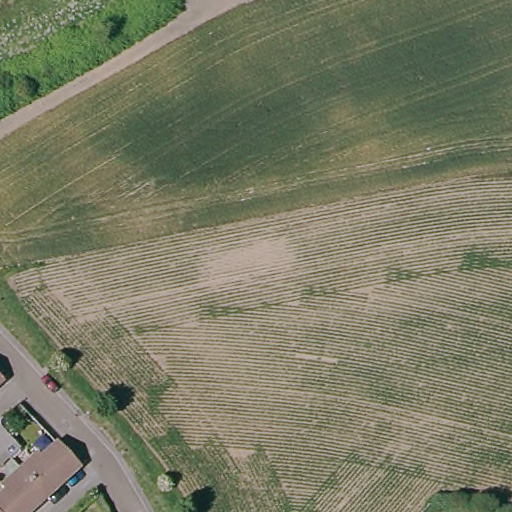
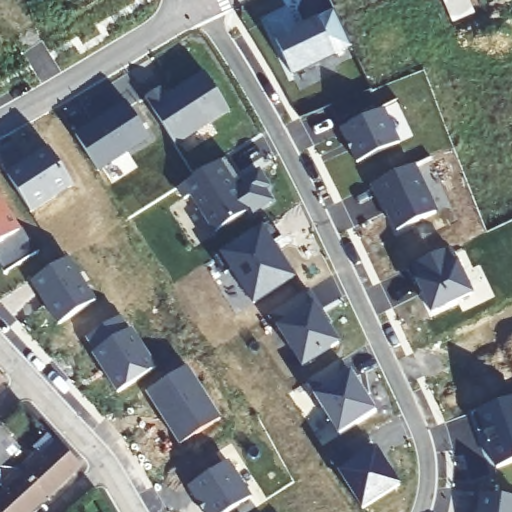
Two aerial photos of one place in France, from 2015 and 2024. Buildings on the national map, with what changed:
new [(443,0),(470,0),(475,13),(452,23),(443,0)]
new [(292,76),(275,39),(332,12),(350,50),(292,76)]
new [(145,98),(164,86),(170,94),(205,72),(230,113),(179,147),(145,98)]
new [(75,135),(127,103),(150,140),(100,173),(75,135)]
new [(338,132),(384,111),(400,144),(355,164),(338,132)]
new [(7,175),(49,148),(74,186),(32,213),(7,175)]
new [(190,196),(183,200),(177,190),(226,159),(240,182),(260,170),(271,188),(265,191),(274,204),(250,219),(247,213),(216,233),(190,196)]
new [(370,188),(415,165),(437,212),(395,232),(370,188)]
new [(0,267),(0,197),(22,230),(37,253),(5,273),(0,267)]
new [(230,272),(222,277),(212,260),(218,255),(264,227),(270,224),(280,240),(273,244),(295,279),(254,307),(230,272)]
new [(407,269),(452,250),(457,262),(473,296),(432,316),(407,269)]
new [(29,284),(69,259),(97,301),(59,325),(29,284)]
new [(275,328),(267,317),(309,290),(316,303),(341,343),(302,368),(275,328)]
new [(92,355),(95,354),(85,339),(122,317),(130,332),(133,330),(158,369),(117,393),(92,355)]
new [(314,395),(306,383),(340,362),(347,374),(351,372),(375,412),(339,435),(314,395)]
new [(147,393),(187,367),(221,420),(180,446),(147,393)]
unchanged [(5,377),(0,382),(0,371),(5,377)]
new [(512,400),(512,462),(496,468),(475,415),(512,400)]
unchanged [(0,453),(0,417),(4,413),(24,436),(13,446),(2,455),(0,453)]
unchanged [(25,457),(40,443),(44,447),(57,434),(82,461),(55,488),(25,457)]
new [(337,472),(377,448),(400,486),(363,509),(337,472)]
unchanged [(13,476),(10,472),(25,457),(55,488),(30,512),(7,512),(0,497),(0,489),(13,476)]
new [(229,462),(252,498),(229,512),(203,512),(187,489),(229,462)]
new [(512,499),(512,512),(478,512),(480,494),(512,499)]
unchanged [(7,512),(0,512),(0,497),(7,512)]

